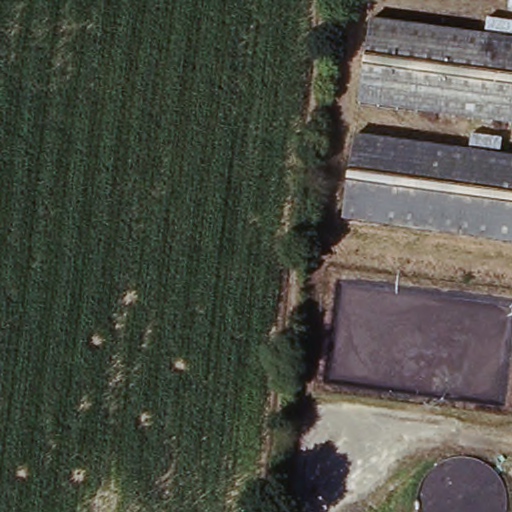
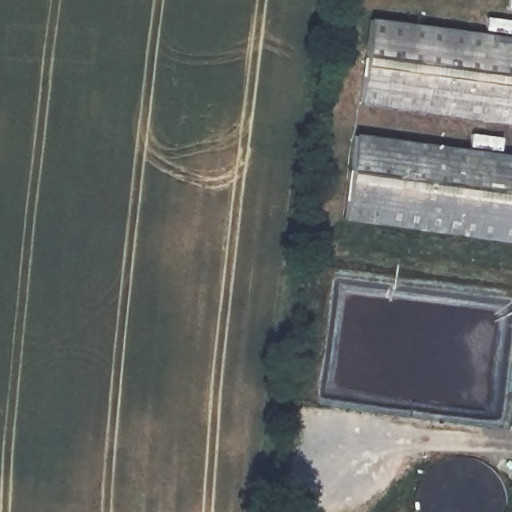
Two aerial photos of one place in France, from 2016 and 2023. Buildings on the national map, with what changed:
unchanged [(512,133),(359,112),(371,28),(506,45),(512,46),(512,133)]
unchanged [(348,137),(484,154),(512,158),(512,237),(338,215),(348,137)]

